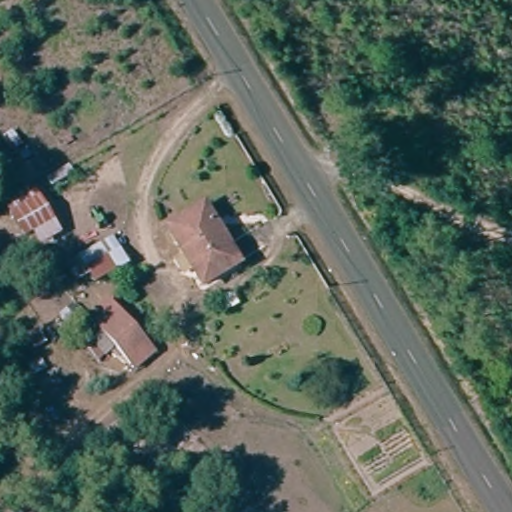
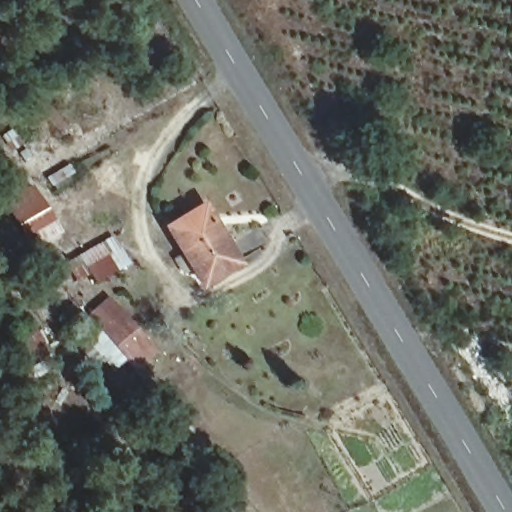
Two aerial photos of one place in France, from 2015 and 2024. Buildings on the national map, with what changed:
unchanged [(29,185),(51,222),(21,238),(0,202),(29,185)]
unchanged [(199,203),(236,264),(197,287),(160,227),(199,203)]
unchanged [(125,263),(92,283),(86,276),(72,285),(61,264),(109,234),(125,263)]
unchanged [(138,385),(122,366),(94,332),(82,318),(111,298),(121,312),(147,347),(161,367),(138,385)]

